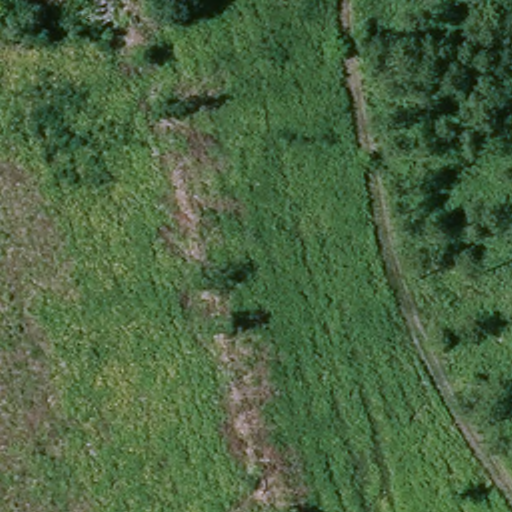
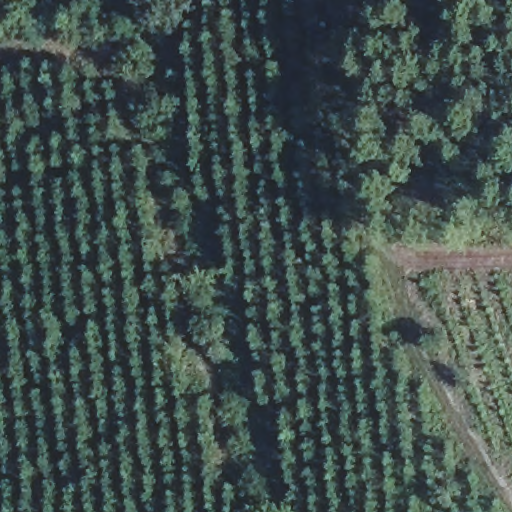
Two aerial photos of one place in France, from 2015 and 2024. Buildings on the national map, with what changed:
[]

